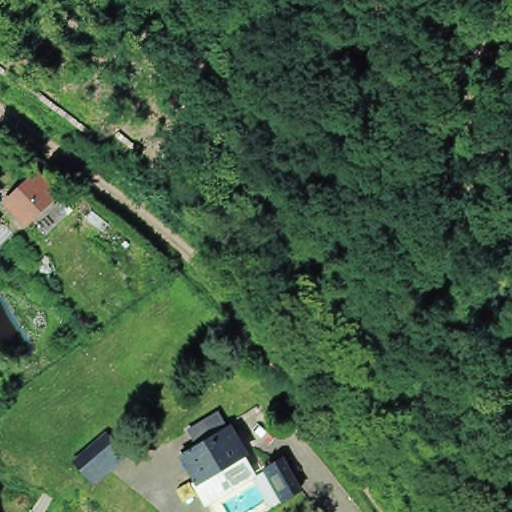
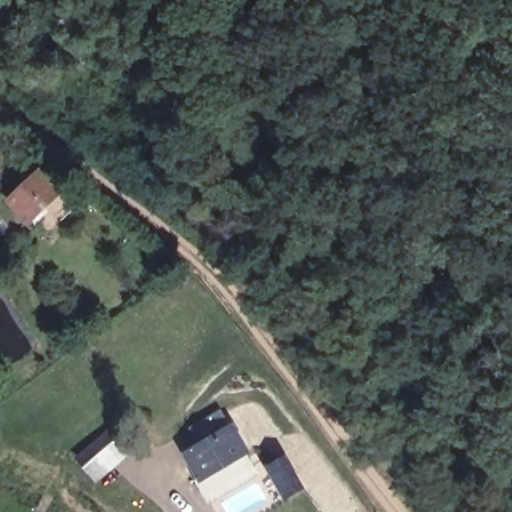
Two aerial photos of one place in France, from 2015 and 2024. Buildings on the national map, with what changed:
unchanged [(5,207),(10,203),(36,178),(50,194),(23,219),(20,215),(15,219),(5,207)]
unchanged [(200,439),(189,421),(217,404),(228,421),(243,441),(200,469),(186,448),(200,439)]
unchanged [(132,455),(101,480),(83,459),(115,433),(132,455)]
unchanged [(215,491),(200,469),(243,441),(258,463),(215,491)]
unchanged [(305,488),(291,497),(272,468),(285,459),(305,488)]

